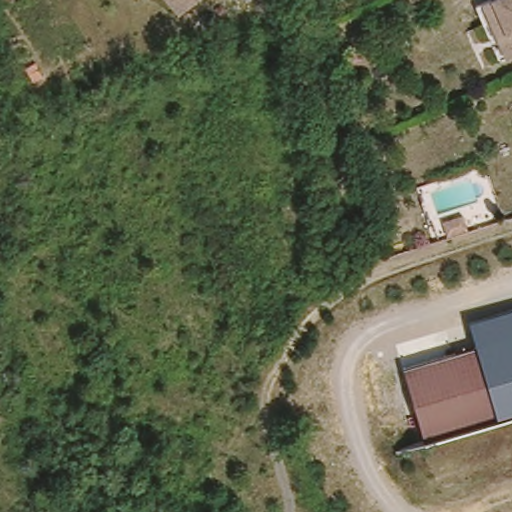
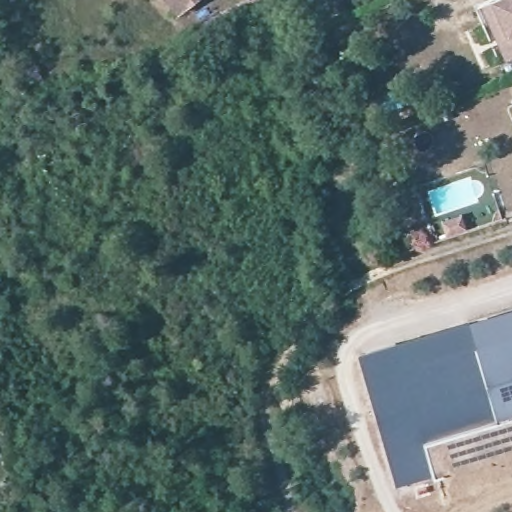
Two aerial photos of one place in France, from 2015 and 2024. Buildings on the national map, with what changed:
unchanged [(199,0),(178,17),(163,0),(199,0)]
unchanged [(496,29),(487,5),(498,0),(512,0),(512,50),(502,26),(496,29)]
unchanged [(477,347),(469,320),(512,306),(512,337),(477,347)]
new [(477,347),(401,371),(424,445),(432,474),(398,485),(360,350),(469,320),(477,347)]
unchanged [(401,371),(512,337),(512,418),(424,445),(401,371)]

